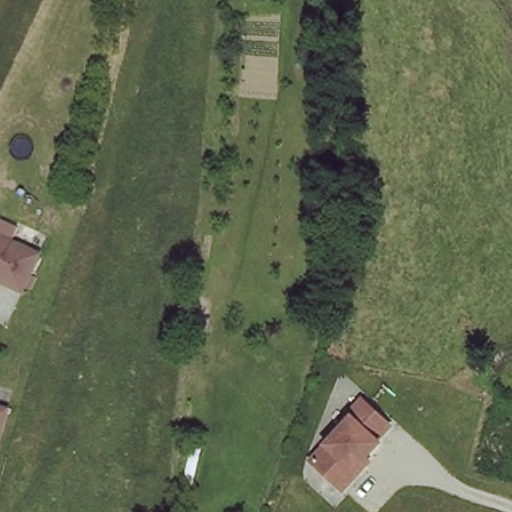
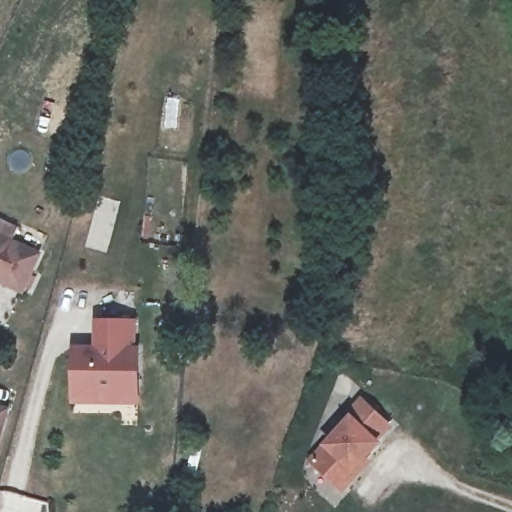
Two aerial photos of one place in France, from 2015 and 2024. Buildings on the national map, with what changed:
unchanged [(38,258),(22,295),(0,285),(0,241),(2,242),(38,258)]
new [(125,402),(80,397),(78,356),(101,356),(101,347),(101,328),(138,329),(137,357),(142,357),(142,390),(141,402),(125,402)]
unchanged [(366,457),(375,466),(345,496),(307,466),(360,401),(393,430),(366,457)]
unchanged [(7,413),(0,439),(0,411),(7,413)]

